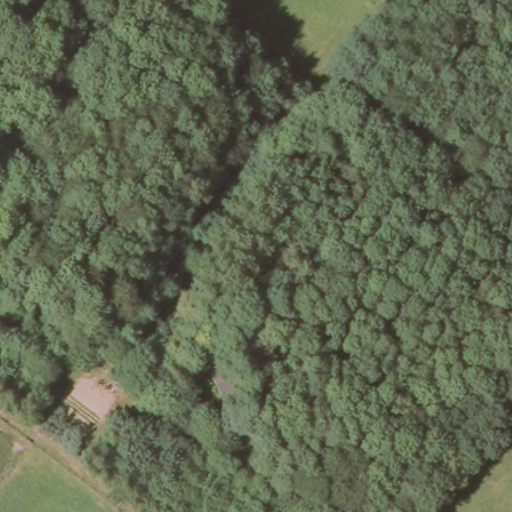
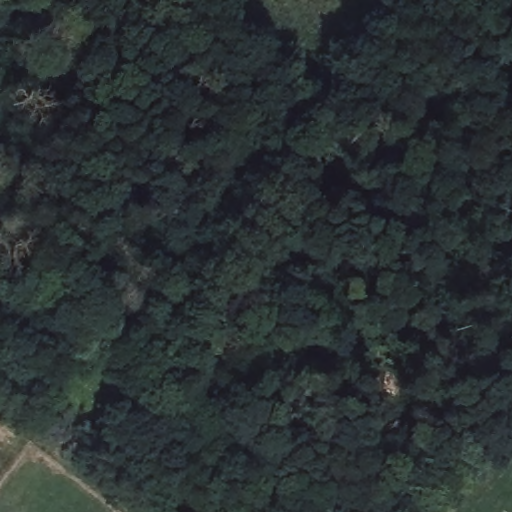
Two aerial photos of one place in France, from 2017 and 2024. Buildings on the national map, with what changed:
unchanged [(224,365),(233,383),(220,391),(210,373),(224,365)]

